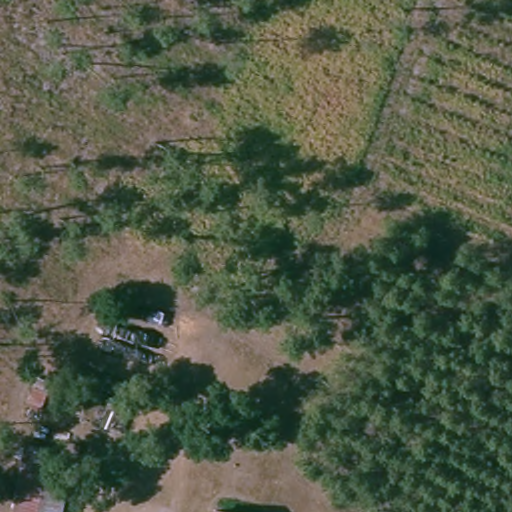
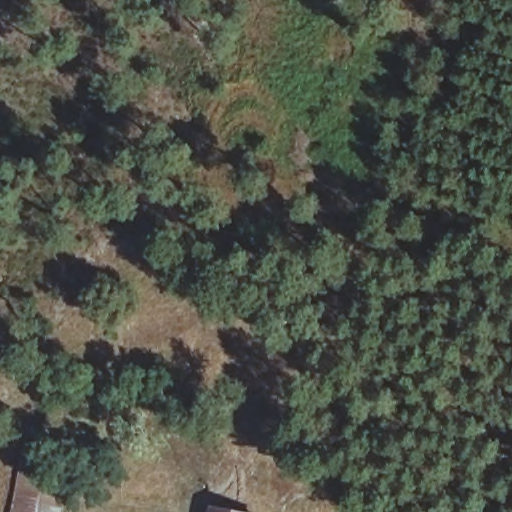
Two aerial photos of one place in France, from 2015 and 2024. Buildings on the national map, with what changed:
unchanged [(52,448),(41,501),(51,502),(50,512),(13,512),(23,444),(52,448)]

